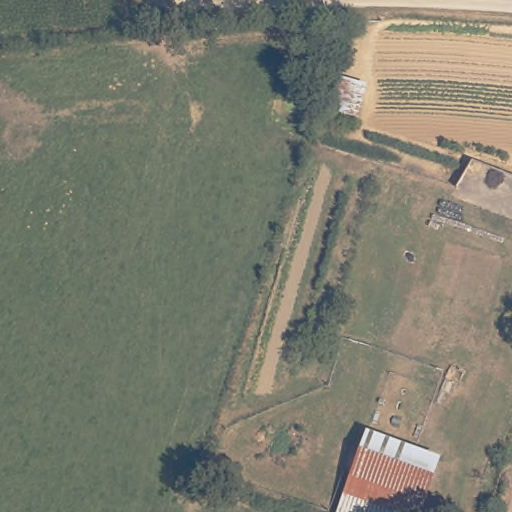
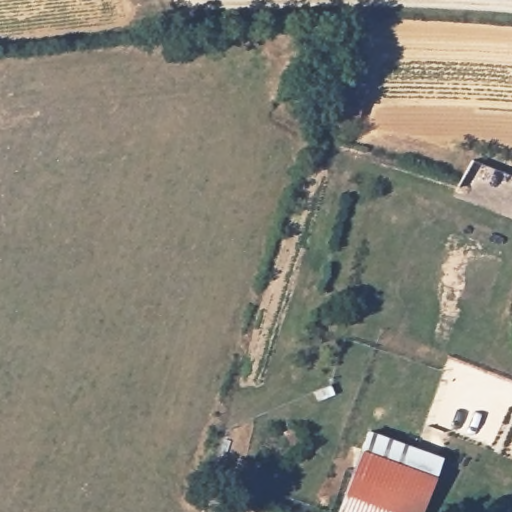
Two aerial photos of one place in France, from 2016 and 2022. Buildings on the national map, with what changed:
unchanged [(334,67),(366,75),(360,111),(325,104),(334,67)]
unchanged [(512,303),(510,302),(512,298),(512,303)]
unchanged [(366,425),(440,450),(420,512),(336,512),(366,425)]

